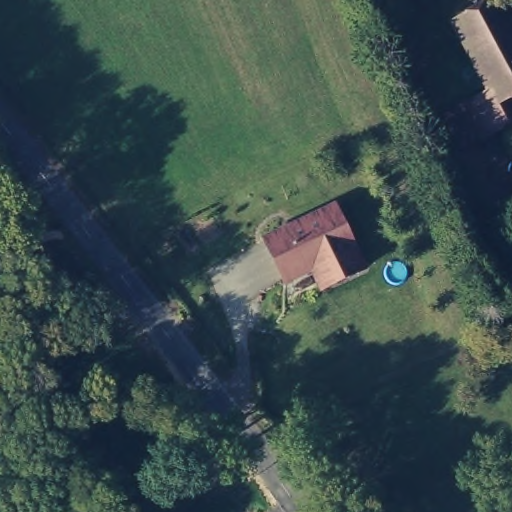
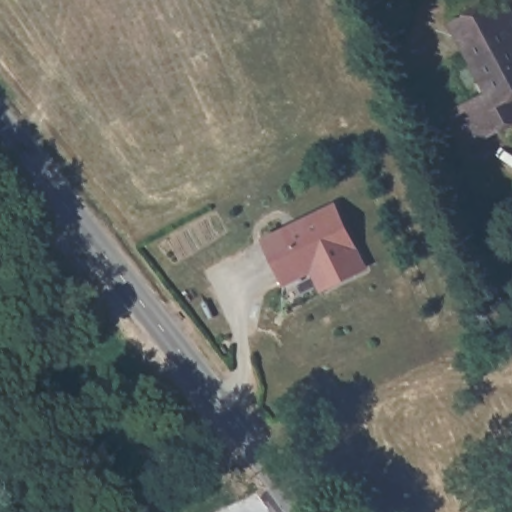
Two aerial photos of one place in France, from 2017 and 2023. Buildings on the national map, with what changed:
unchanged [(487,95),(451,25),(499,0),(508,0),(512,8),(512,131),(461,153),(445,117),(487,95)]
unchanged [(367,265),(322,287),(312,268),(285,277),(264,237),(333,202),(367,265)]

